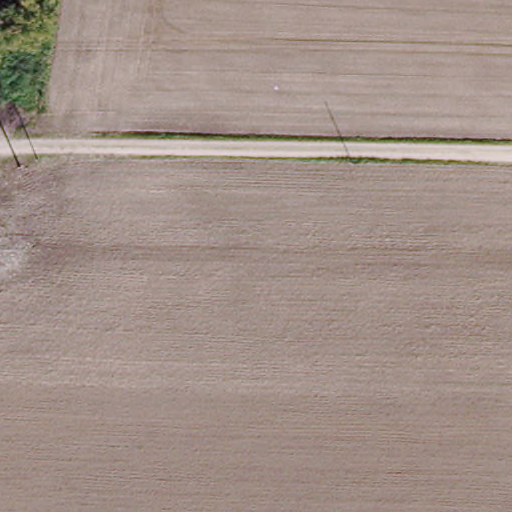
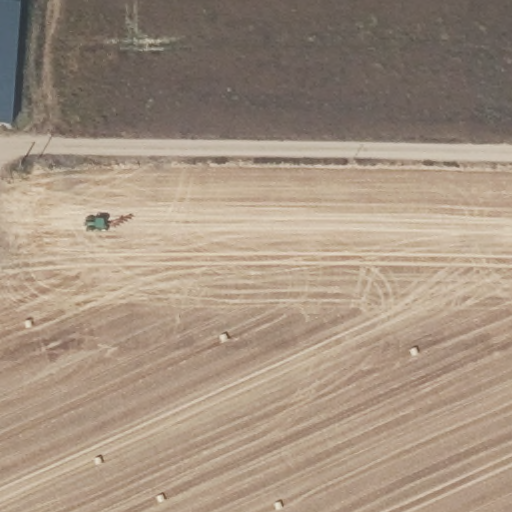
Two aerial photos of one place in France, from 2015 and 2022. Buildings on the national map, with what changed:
new [(16,3),(7,124),(0,123),(0,1),(16,3)]

